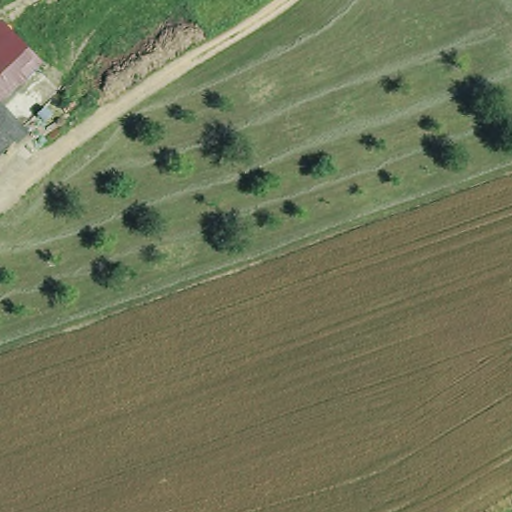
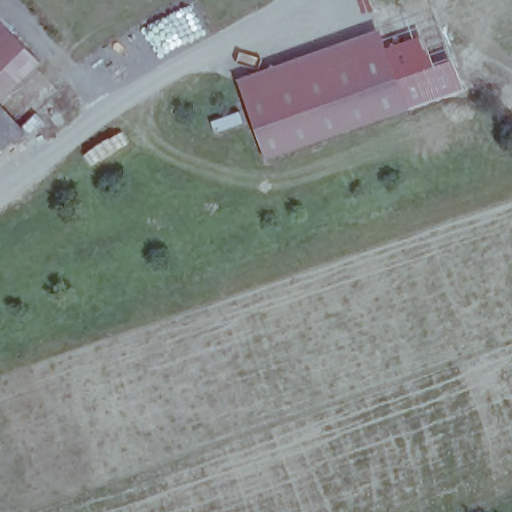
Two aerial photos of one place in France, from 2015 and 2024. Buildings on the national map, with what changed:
new [(0,27),(38,66),(23,87),(0,64),(0,27)]
new [(361,59),(247,99),(239,79),(376,32),(407,112),(383,120),(361,59)]
new [(361,59),(383,120),(269,160),(247,99),(361,59)]
unchanged [(0,64),(23,87),(3,106),(28,134),(0,160),(0,64)]

